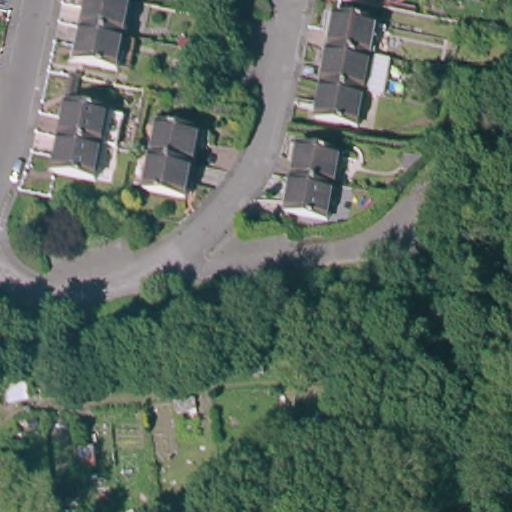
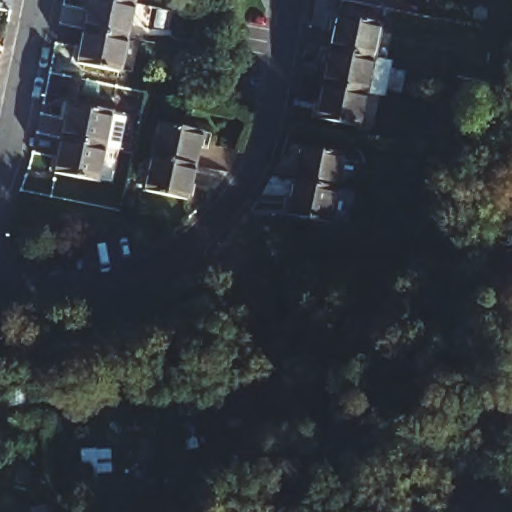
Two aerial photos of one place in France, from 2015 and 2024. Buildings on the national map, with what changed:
unchanged [(126,14),(122,35),(121,34),(79,25),(82,10),(84,0),(130,0),(126,14)]
unchanged [(369,3),(357,0),(355,0),(370,0),(369,3)]
unchanged [(380,0),(411,7),(410,12),(379,5),(380,0)]
unchanged [(308,120),(316,82),(321,63),(324,47),(331,12),(374,22),(366,56),(384,60),(376,95),(359,91),(351,129),(308,120)]
unchanged [(114,69),(73,60),(79,25),(121,34),(122,35),(114,69)]
unchanged [(178,47),(179,40),(192,42),(191,50),(178,47)]
unchanged [(63,98),(107,107),(99,144),(56,134),(63,98)]
unchanged [(151,155),(158,118),(202,127),(194,163),(151,155)]
unchanged [(99,144),(93,178),(49,169),(56,134),(99,144)]
unchanged [(311,178),(291,174),(299,141),(341,150),(333,183),(311,178)]
unchanged [(186,198),(145,189),(151,155),(194,163),(186,198)]
unchanged [(325,218),(283,211),(291,174),(311,178),(333,183),(325,218)]

